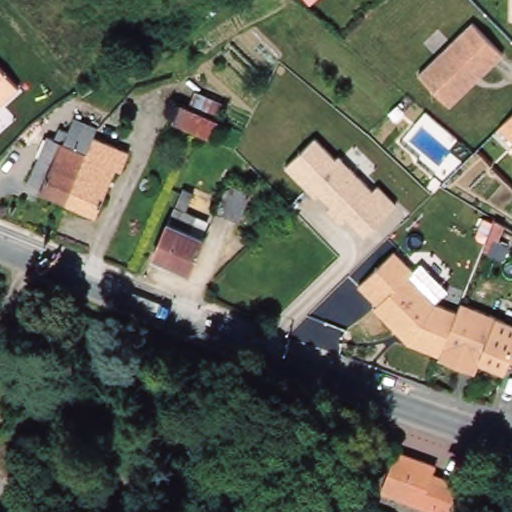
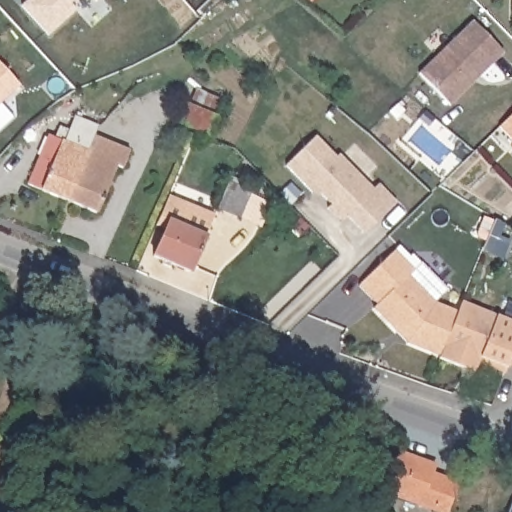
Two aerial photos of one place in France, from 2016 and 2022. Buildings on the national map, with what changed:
new [(25,0),(71,0),(67,4),(73,11),(45,36),(18,6),(25,0)]
unchanged [(305,0),(312,0),(309,3),(305,0)]
unchanged [(506,53),(453,105),(423,72),(473,21),(506,53)]
unchanged [(19,87),(0,104),(0,67),(19,87)]
unchanged [(108,80),(117,85),(111,98),(100,92),(108,80)]
unchanged [(182,98),(217,112),(210,132),(197,127),(196,131),(173,117),(182,98)]
unchanged [(47,134),(56,138),(59,127),(69,131),(75,117),(98,126),(93,140),(91,143),(79,137),(71,151),(57,145),(46,167),(35,163),(47,134)]
unchanged [(512,117),(512,145),(498,129),(512,117)]
unchanged [(35,163),(46,167),(57,145),(71,151),(79,137),(91,143),(66,200),(27,183),(35,163)]
unchanged [(334,157),(338,153),(372,189),(377,184),(397,204),(362,236),(347,218),(340,223),(326,207),(330,205),(318,193),(313,197),(283,166),(314,137),(334,157)]
unchanged [(91,143),(93,140),(125,152),(118,170),(113,168),(93,213),(66,200),(91,143)]
unchanged [(228,182),(249,193),(236,216),(218,205),(228,182)]
unchanged [(180,189),(190,194),(184,210),(196,215),(190,227),(203,235),(186,270),(152,255),(180,189)]
unchanged [(409,275),(435,301),(461,311),(463,301),(512,322),(512,365),(507,375),(481,364),(477,374),(407,343),(361,284),(398,251),(415,266),(409,275)]
unchanged [(436,470),(433,478),(454,486),(446,512),(441,512),(384,492),(396,456),(436,470)]

